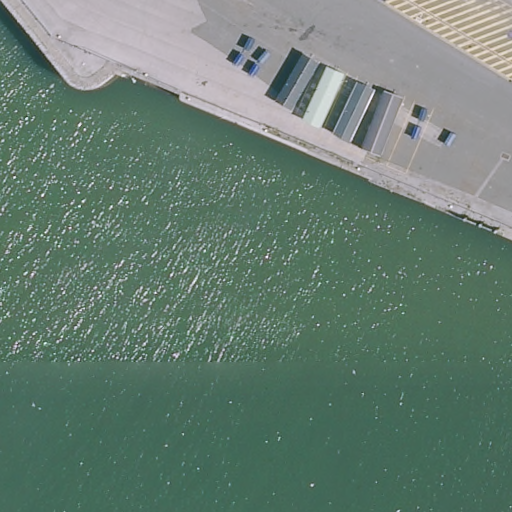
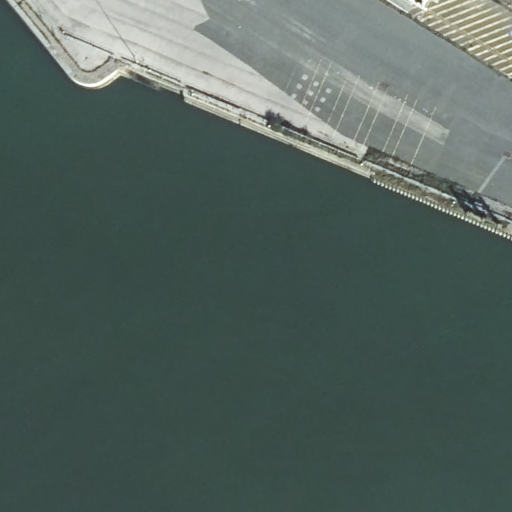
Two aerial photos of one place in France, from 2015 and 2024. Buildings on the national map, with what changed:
[]

